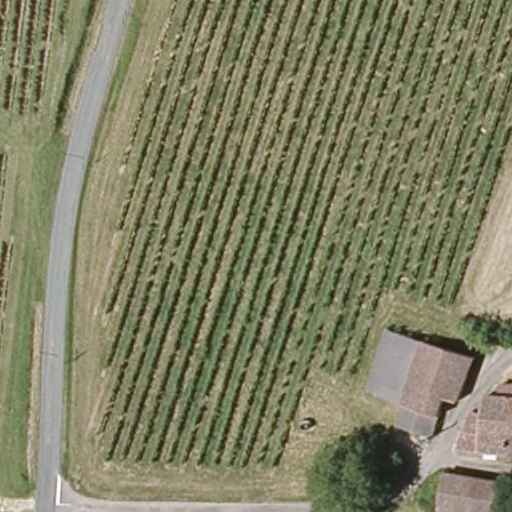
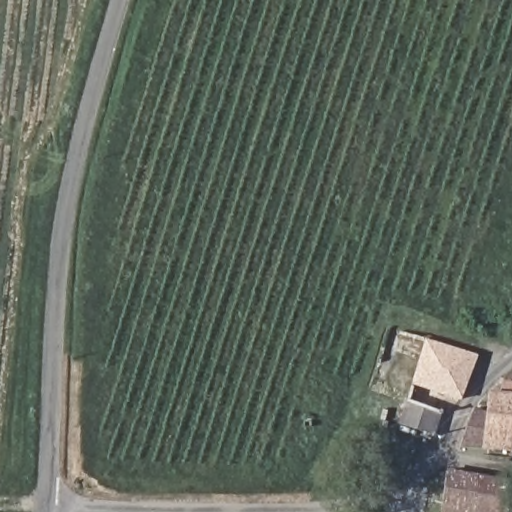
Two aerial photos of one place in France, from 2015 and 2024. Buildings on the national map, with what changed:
unchanged [(399,424),(407,400),(370,389),(391,328),(477,352),(460,400),(445,396),(434,433),(399,424)]
unchanged [(461,446),(476,408),(492,408),(494,392),(512,393),(512,453),(461,446)]
unchanged [(508,512),(444,512),(448,466),(512,481),(512,487),(508,512)]

